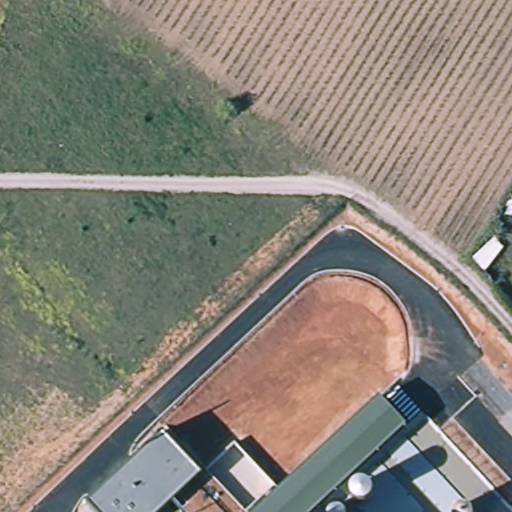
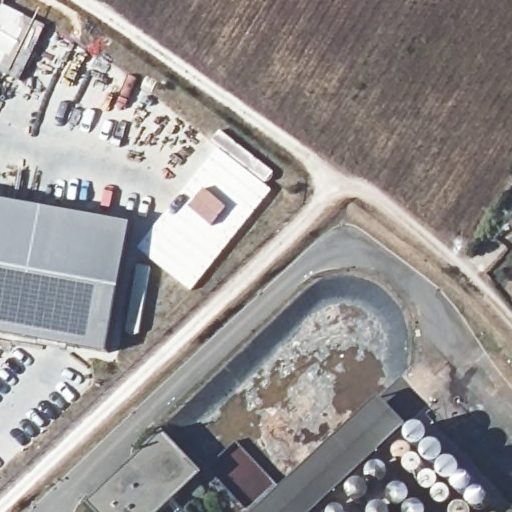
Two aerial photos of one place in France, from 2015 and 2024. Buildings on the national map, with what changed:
new [(15,77),(0,68),(0,3),(2,0),(3,0),(46,27),(15,77)]
new [(138,248),(218,148),(273,190),(193,291),(138,248)]
new [(131,224),(108,354),(0,334),(0,201),(131,224)]
unchanged [(323,512),(254,512),(380,397),(408,427),(323,512)]
unchanged [(160,512),(96,512),(88,503),(162,431),(201,473),(160,512)]
new [(447,512),(408,472),(406,466),(409,460),(415,458),(420,459),(470,512),(447,512)]
new [(390,473),(426,512),(359,512),(352,504),(349,497),(352,491),(376,466),(385,469),(390,473)]
new [(334,509),(342,511),(342,512),(330,512),(331,510),(334,509)]

